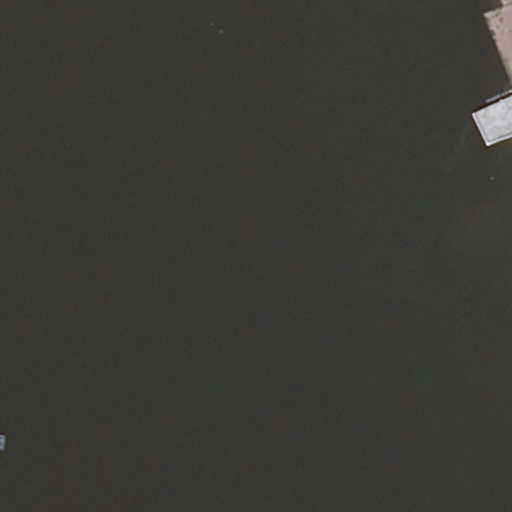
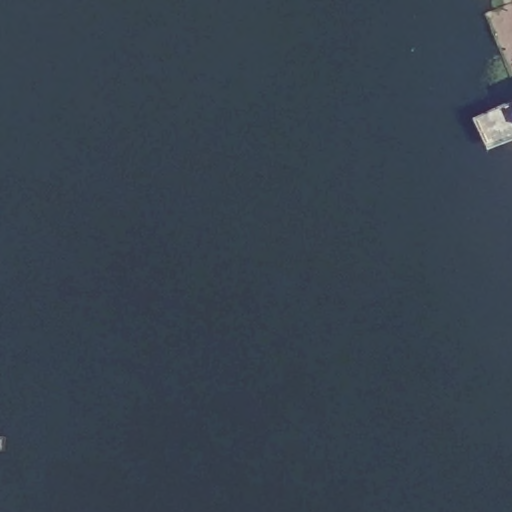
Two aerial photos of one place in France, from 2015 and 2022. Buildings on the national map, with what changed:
unchanged [(487,146),(472,115),(512,95),(512,97),(489,108),(502,137),(512,132),(512,136),(487,146)]
unchanged [(502,137),(489,108),(512,97),(512,132),(502,137)]

